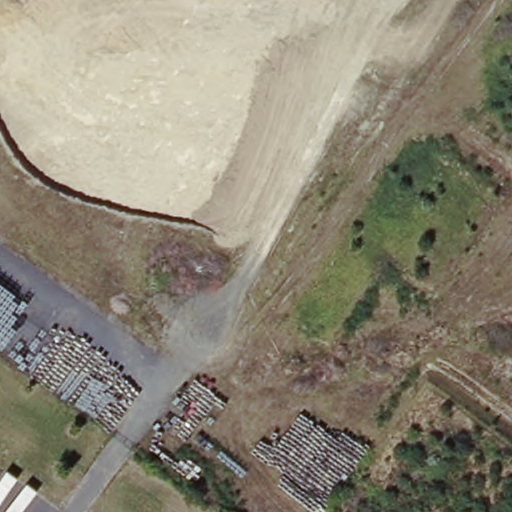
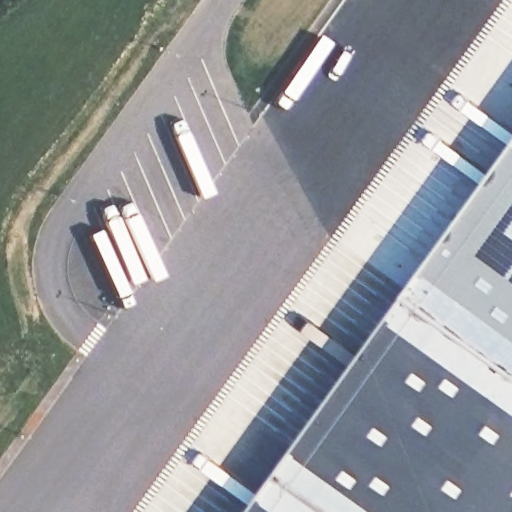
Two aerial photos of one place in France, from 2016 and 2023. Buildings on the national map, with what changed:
new [(512,348),(512,512),(262,512),(426,287),(512,348)]
demolished [(50,512),(0,512),(0,482),(4,475),(52,509),(50,512)]

